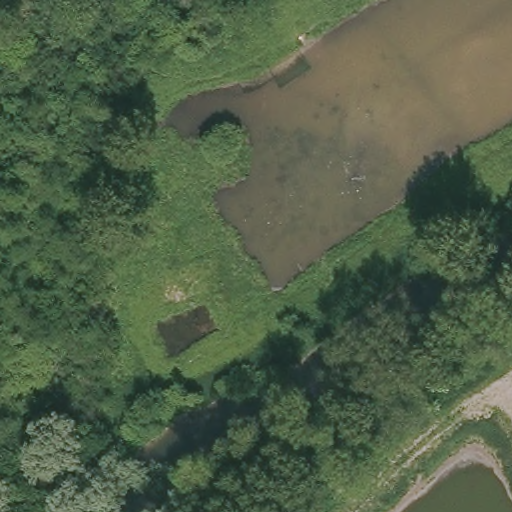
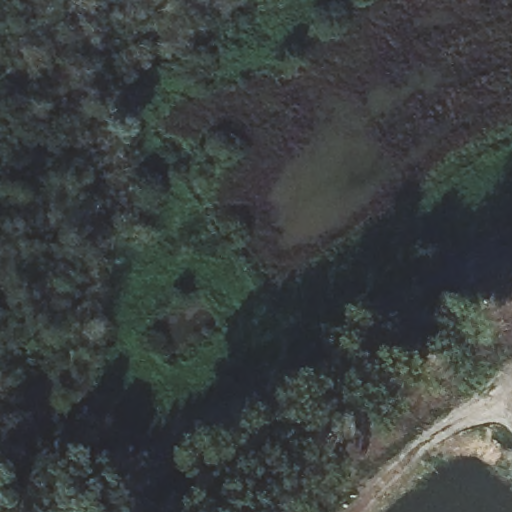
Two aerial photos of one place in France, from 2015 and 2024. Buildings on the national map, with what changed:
[]

